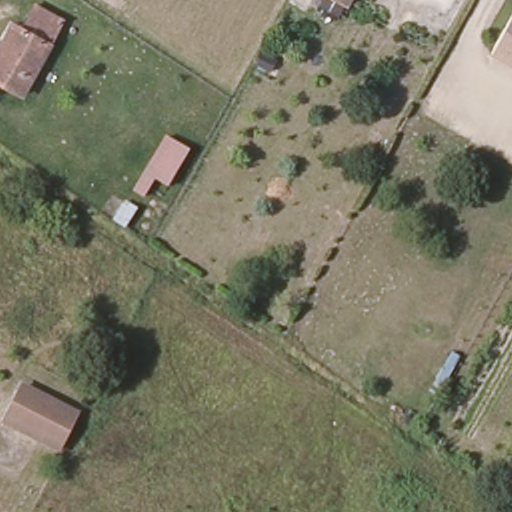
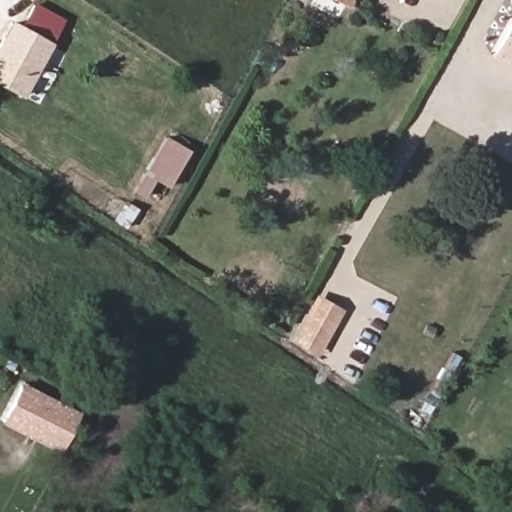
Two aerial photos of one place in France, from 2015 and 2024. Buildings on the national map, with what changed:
unchanged [(62,20),(29,93),(0,77),(0,44),(3,39),(11,22),(24,29),(35,5),(62,20)]
unchanged [(511,22),(512,23),(512,59),(495,49),(511,22)]
unchanged [(186,148),(170,182),(157,176),(145,197),(134,192),(164,136),(186,148)]
unchanged [(139,207),(131,227),(119,221),(129,200),(139,207)]
new [(319,356),(291,340),(316,293),(345,309),(319,356)]
unchanged [(74,415),(59,448),(2,421),(19,386),(74,415)]

